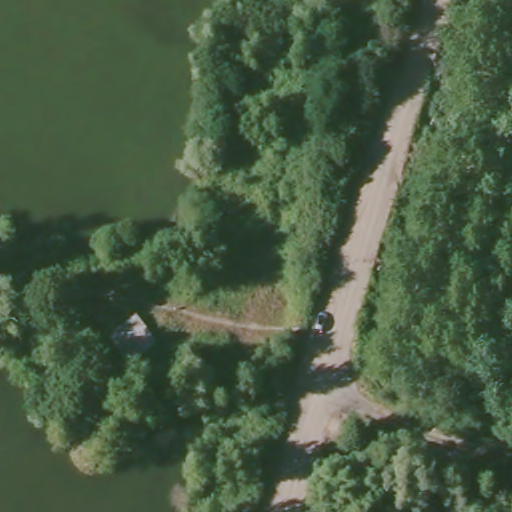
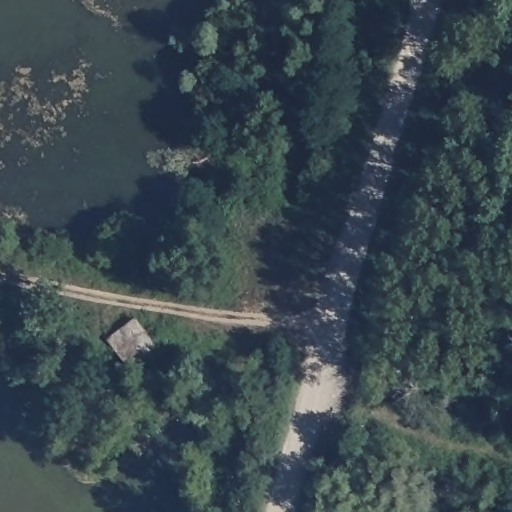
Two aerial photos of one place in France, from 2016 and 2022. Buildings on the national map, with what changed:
unchanged [(157,348),(128,370),(106,340),(136,317),(157,348)]

